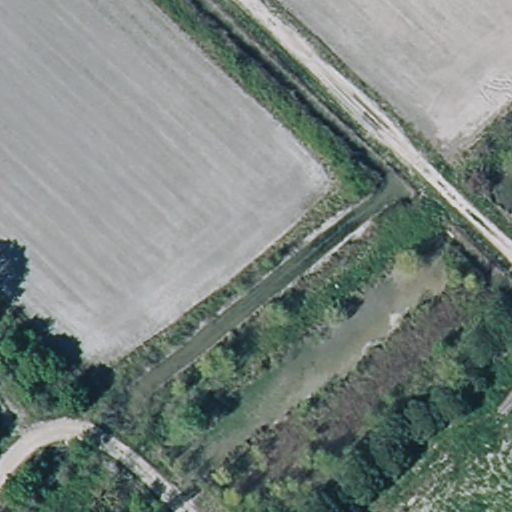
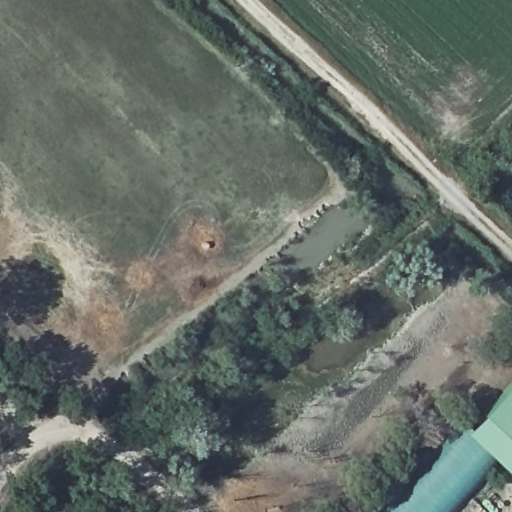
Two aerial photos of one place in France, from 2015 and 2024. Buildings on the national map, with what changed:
new [(512,382),(512,474),(494,458),(466,431),(512,382)]
new [(466,431),(494,458),(445,512),(392,512),(466,431)]

